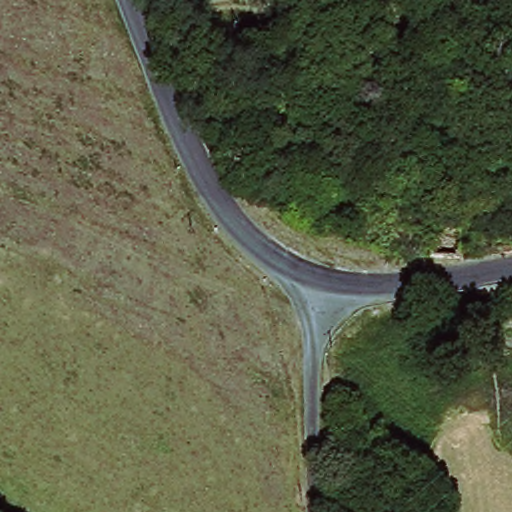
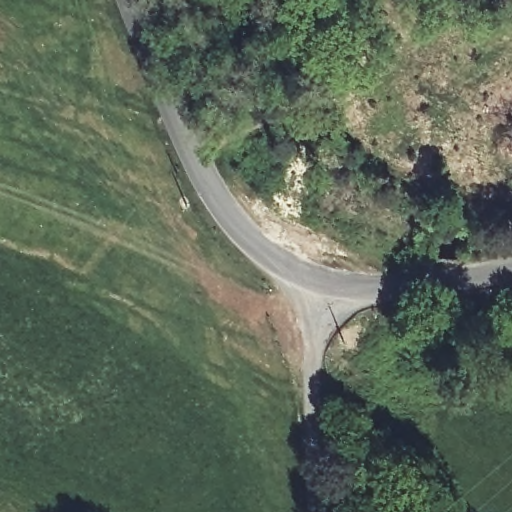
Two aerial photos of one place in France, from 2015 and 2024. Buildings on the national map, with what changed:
unchanged [(442,208),(443,247),(411,246),(413,206),(442,208)]
unchanged [(496,217),(495,242),(461,246),(463,216),(496,217)]

